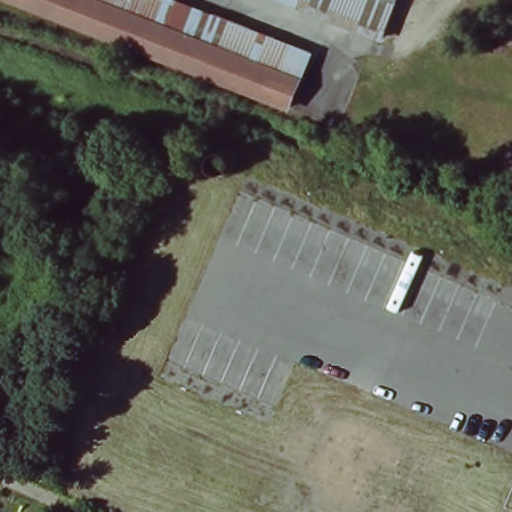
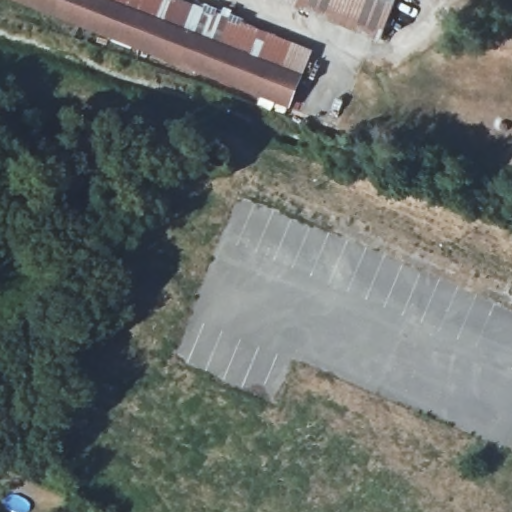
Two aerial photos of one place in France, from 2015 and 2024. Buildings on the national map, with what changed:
unchanged [(78,25),(15,0),(87,0),(83,11),(78,25)]
unchanged [(288,109),(78,25),(83,11),(87,0),(180,0),(311,52),(288,109)]
unchanged [(276,0),(396,0),(380,40),(276,0)]

